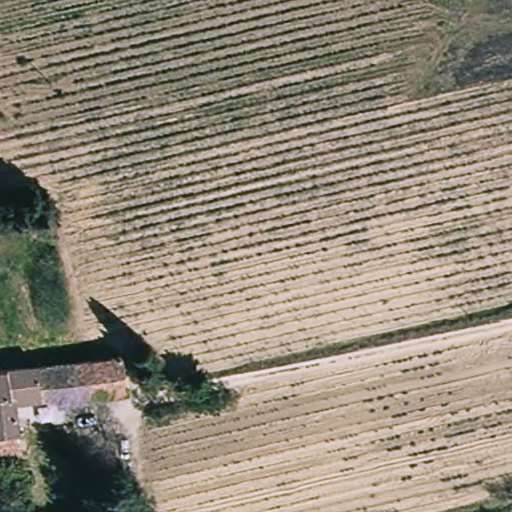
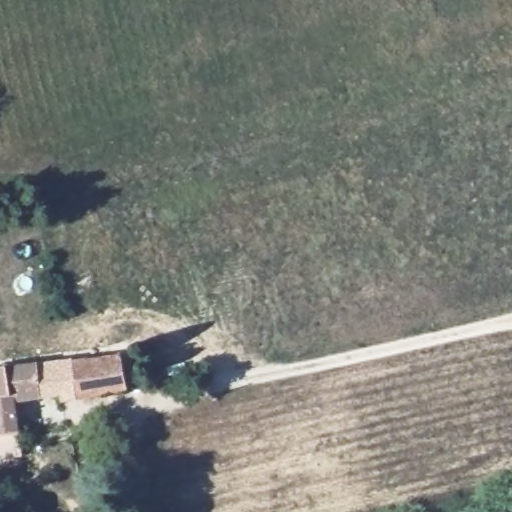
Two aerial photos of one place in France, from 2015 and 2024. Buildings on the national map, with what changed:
unchanged [(118,351),(124,389),(61,399),(59,390),(10,398),(17,452),(0,455),(0,365),(118,351)]
unchanged [(115,471),(85,476),(82,461),(113,458),(115,471)]

